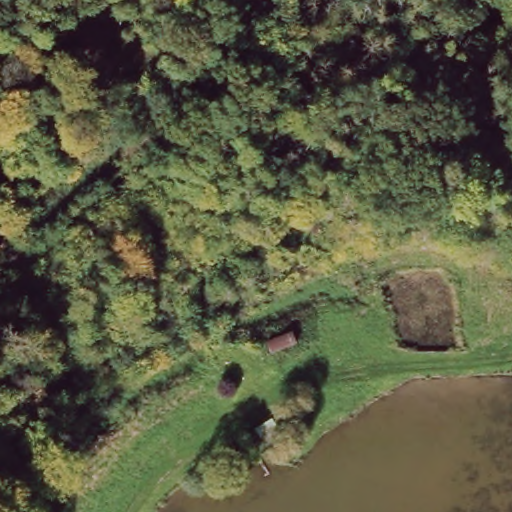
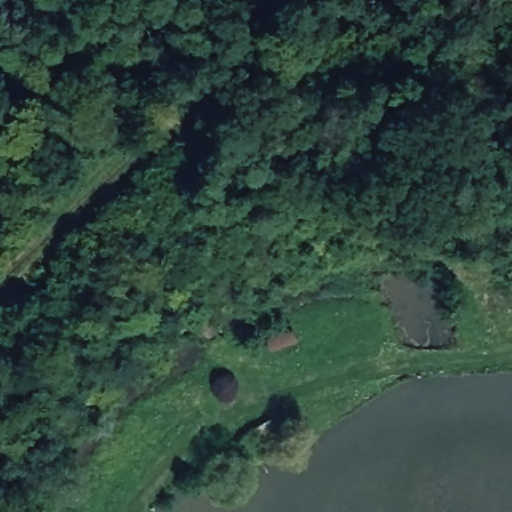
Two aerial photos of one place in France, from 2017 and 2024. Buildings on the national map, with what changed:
unchanged [(273,413),(287,437),(267,450),(254,426),(273,413)]

